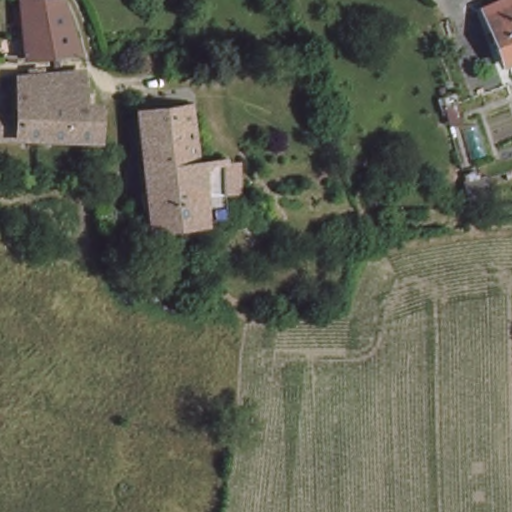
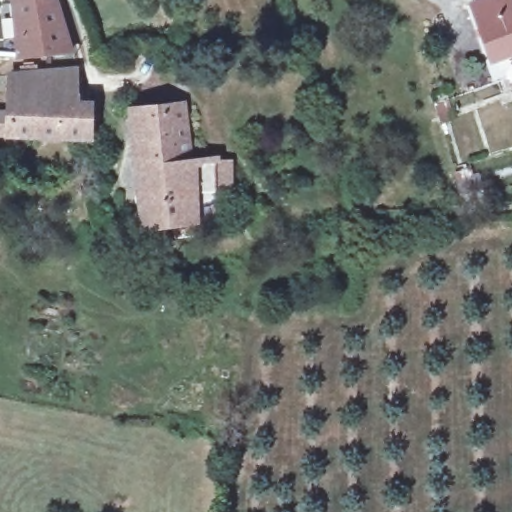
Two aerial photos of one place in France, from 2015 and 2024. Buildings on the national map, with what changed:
unchanged [(15,0),(57,0),(66,56),(18,59),(15,0)]
unchanged [(512,12),(512,77),(510,70),(506,57),(489,62),(473,12),(503,0),(506,0),(512,12)]
unchanged [(10,124),(10,81),(76,76),(77,119),(88,120),(88,145),(10,141),(0,141),(0,124),(10,124)]
unchanged [(180,111),(187,171),(185,228),(136,234),(129,114),(180,111)]
unchanged [(206,169),(210,224),(185,228),(187,171),(206,169)]

